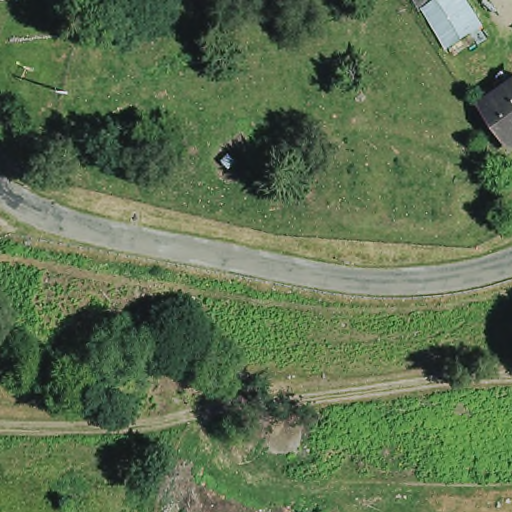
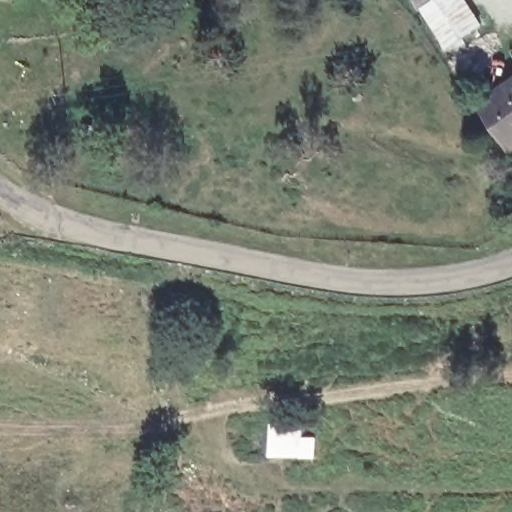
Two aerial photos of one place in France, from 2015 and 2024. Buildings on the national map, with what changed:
unchanged [(416,0),(469,0),(482,38),(450,56),(416,0)]
unchanged [(505,149),(475,105),(466,91),(477,84),(487,98),(512,80),(512,144),(505,149)]

